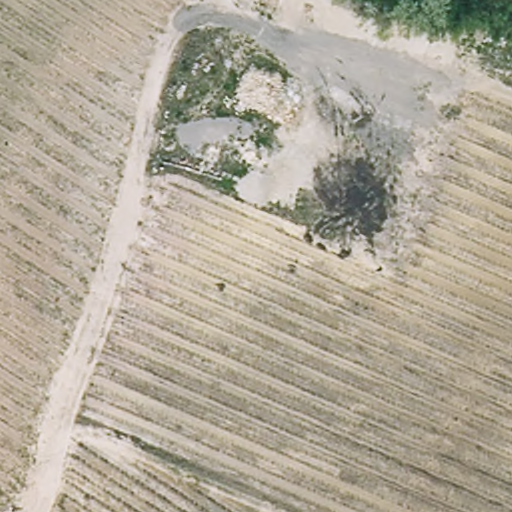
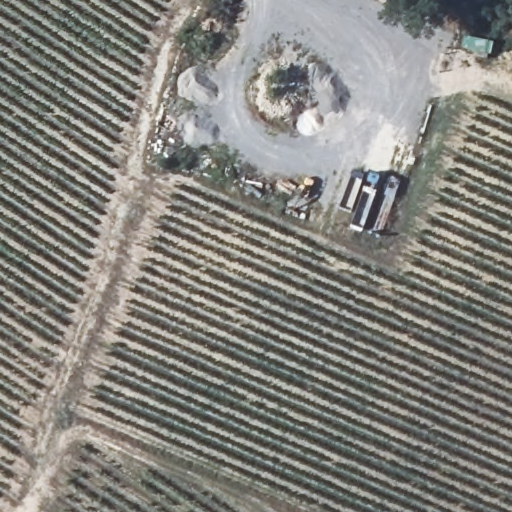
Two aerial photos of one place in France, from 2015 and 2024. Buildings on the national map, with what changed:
[]

